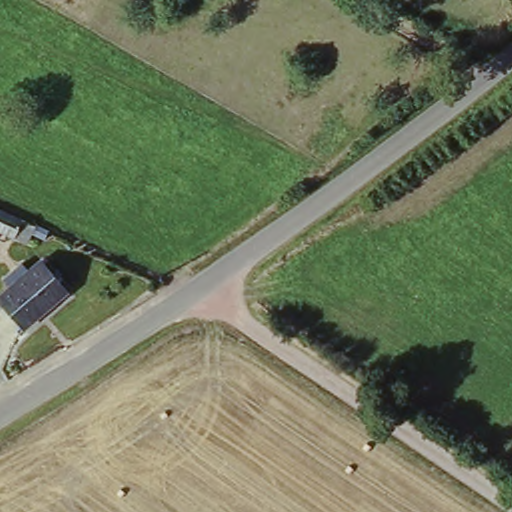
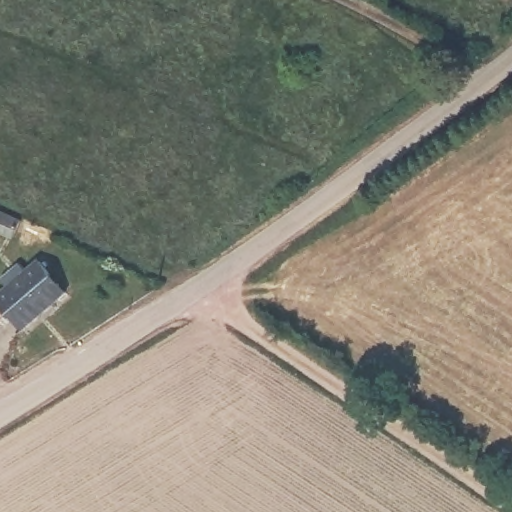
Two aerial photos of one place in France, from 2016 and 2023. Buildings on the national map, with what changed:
unchanged [(26,244),(15,239),(0,232),(0,212),(23,222),(35,227),(26,244)]
unchanged [(71,297),(29,333),(3,304),(17,291),(12,284),(26,272),(32,277),(45,267),(71,297)]

